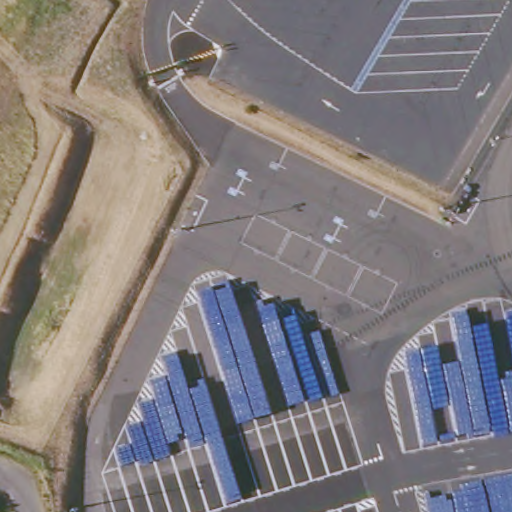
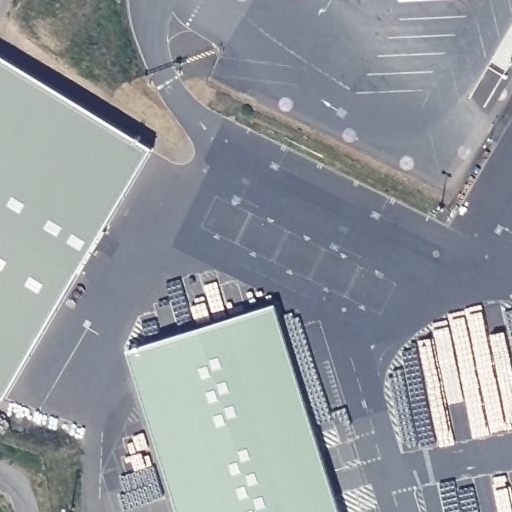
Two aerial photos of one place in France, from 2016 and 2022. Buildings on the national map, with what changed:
new [(0,396),(0,57),(154,148),(5,398),(0,396)]
new [(277,304),(342,512),(179,512),(128,351),(277,304)]

